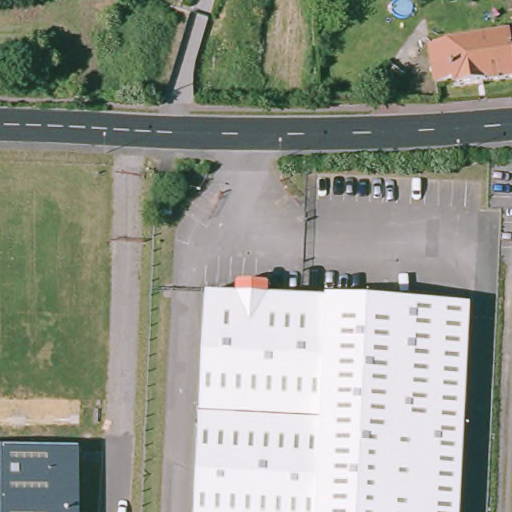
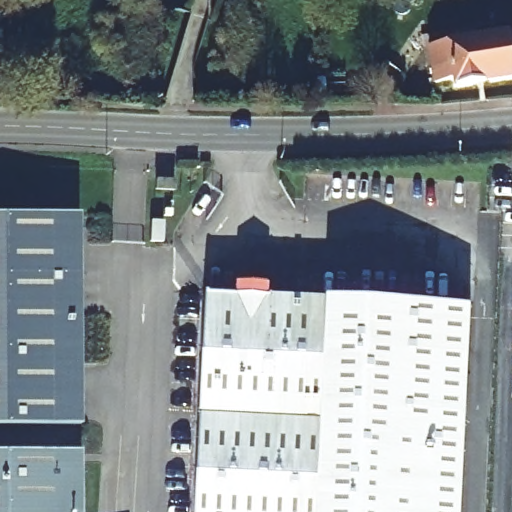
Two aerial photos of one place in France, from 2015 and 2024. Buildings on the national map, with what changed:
demolished [(456,14),(446,14),(445,0),(455,0),(456,14)]
unchanged [(470,83),(462,39),(512,31),(512,76),(470,83)]
unchanged [(426,97),(424,83),(418,45),(462,39),(470,83),(446,87),(444,80),(436,81),(440,96),(426,97)]
unchanged [(172,178),(172,186),(156,186),(156,178),(172,178)]
new [(0,427),(0,220),(78,217),(82,424),(0,427)]
unchanged [(233,295),(234,284),(264,285),(265,296),(406,303),(400,423),(430,425),(425,512),(191,512),(201,294),(233,295)]
unchanged [(449,512),(425,512),(430,425),(400,423),(406,303),(460,306),(449,512)]
unchanged [(83,512),(0,512),(0,450),(83,450),(83,512)]

